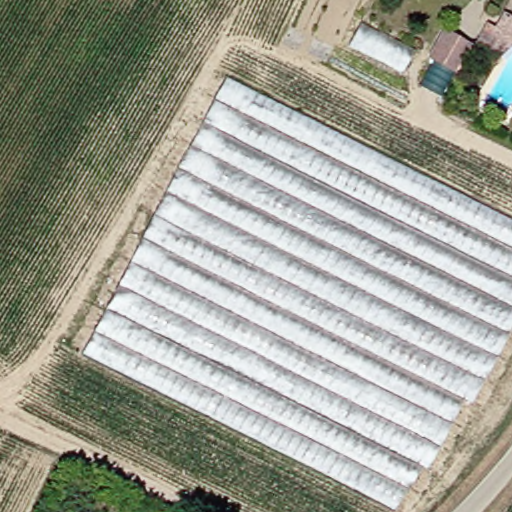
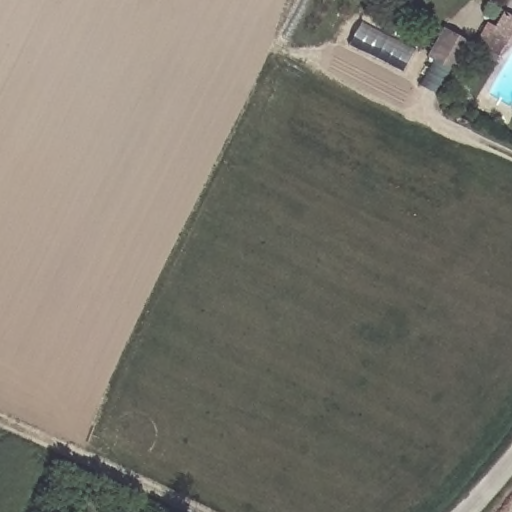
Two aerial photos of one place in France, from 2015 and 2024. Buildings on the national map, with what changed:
unchanged [(496,29),(504,13),(512,17),(512,40),(499,54),(477,41),(485,23),(496,29)]
new [(447,28),(472,43),(457,70),(431,55),(447,28)]
demolished [(219,72),(512,217),(512,280),(192,118),(219,72)]
demolished [(512,280),(512,327),(472,404),(461,399),(429,467),(423,464),(96,302),(192,118),(512,280)]
demolished [(423,464),(395,506),(74,349),(96,302),(423,464)]

